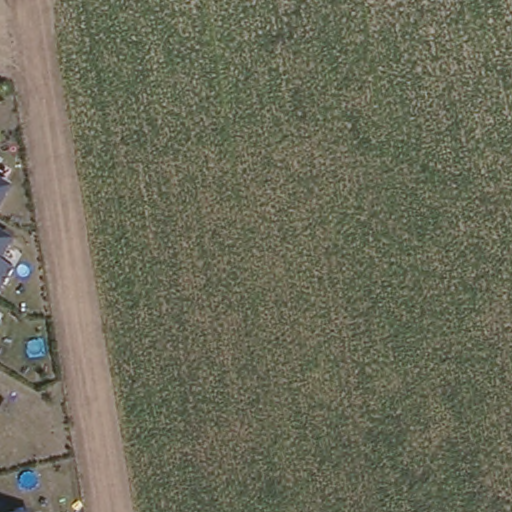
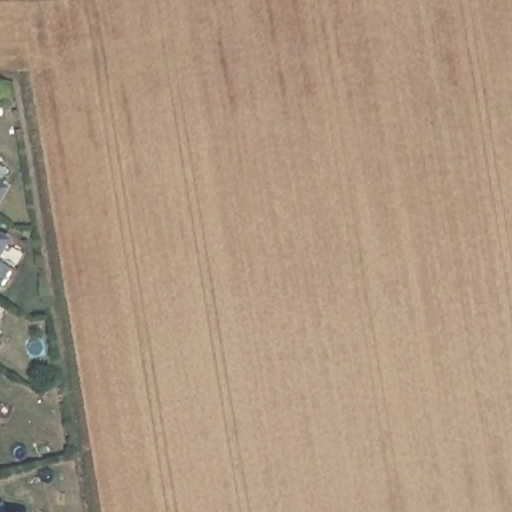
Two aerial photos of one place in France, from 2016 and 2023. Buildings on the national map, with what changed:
unchanged [(12,184),(0,198),(0,177),(12,184)]
unchanged [(12,237),(2,259),(14,266),(0,291),(0,231),(12,237)]
unchanged [(4,321),(0,330),(0,320),(4,321)]
unchanged [(0,512),(0,503),(9,500),(13,512),(0,512)]
unchanged [(32,512),(26,512),(32,510),(32,512)]

